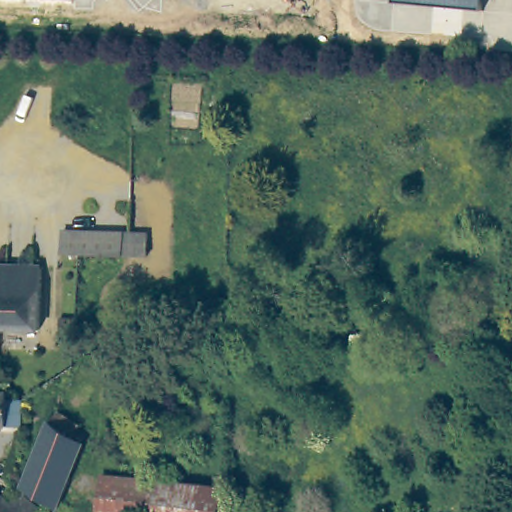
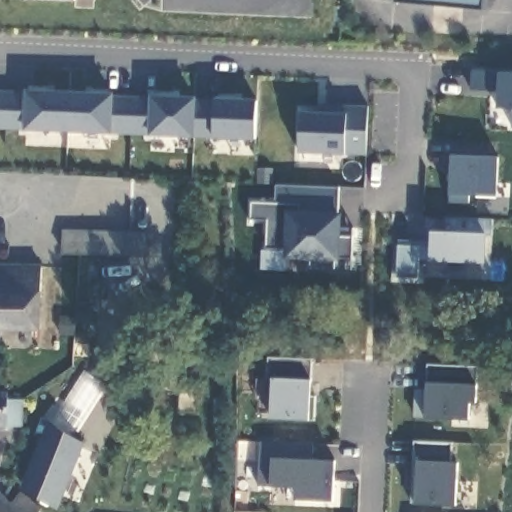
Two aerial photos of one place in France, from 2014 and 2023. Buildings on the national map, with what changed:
unchanged [(396,1),(396,0),(484,0),(484,9),(396,1)]
new [(498,106),(497,89),(470,89),(471,69),(498,70),(512,71),(512,107),(498,106)]
new [(255,139),(24,129),(0,128),(0,87),(257,99),(255,139)]
new [(511,126),(512,107),(512,127),(511,126)]
new [(469,194),(469,203),(449,202),(449,193),(449,154),(496,155),(495,194),(469,194)]
new [(276,184),(339,187),(338,212),(342,212),(339,259),(333,259),(333,267),(309,267),(309,258),(285,258),(286,248),(265,248),(267,219),(250,219),(250,202),(275,203),(276,184)]
new [(432,240),(432,229),(444,229),(444,215),(492,219),(491,232),(486,232),(484,262),(431,259),(419,259),(418,277),(397,275),(399,245),(399,239),(432,240)]
unchanged [(148,229),(147,255),(63,252),(63,227),(148,229)]
unchanged [(39,328),(0,327),(0,263),(41,264),(39,328)]
new [(310,379),(309,417),(271,417),(272,377),(268,377),(269,356),(312,358),(310,379)]
new [(425,417),(427,382),(426,382),(427,363),(477,366),(476,384),(475,402),(469,402),(469,418),(425,417)]
unchanged [(3,425),(0,425),(0,391),(4,392),(4,398),(17,399),(15,425),(3,425)]
unchanged [(84,422),(79,436),(90,441),(60,504),(23,491),(35,468),(59,414),(84,422)]
new [(259,441),(312,444),(312,459),(334,459),(333,499),(295,498),(296,486),(270,485),(258,484),(259,441)]
new [(414,503),(419,459),(414,459),(414,441),(452,442),(451,462),(458,462),(454,504),(414,503)]
unchanged [(0,499),(0,493),(3,496),(0,499)]
unchanged [(6,499),(13,504),(21,494),(44,512),(43,512),(0,512),(0,499),(3,496),(6,499)]

